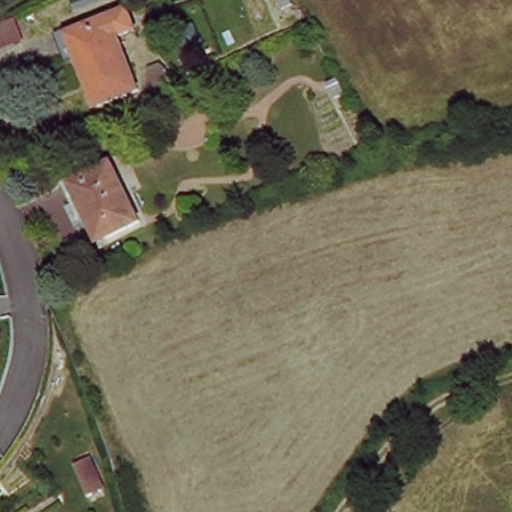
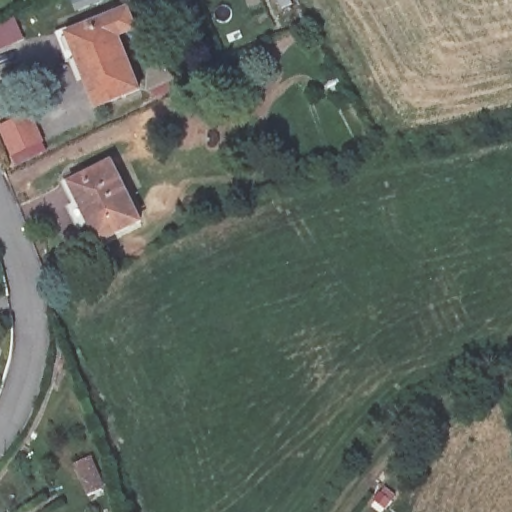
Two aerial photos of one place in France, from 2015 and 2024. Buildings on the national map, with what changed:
unchanged [(134,3),(145,28),(126,36),(147,88),(100,106),(69,29),(134,3)]
new [(17,167),(0,129),(33,114),(50,153),(17,167)]
unchanged [(143,217),(103,237),(75,180),(114,160),(143,217)]

